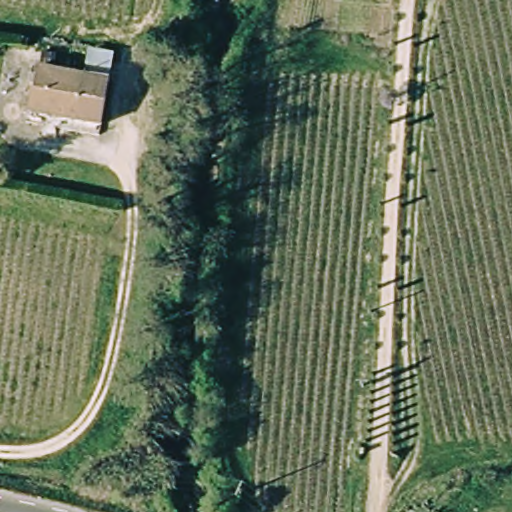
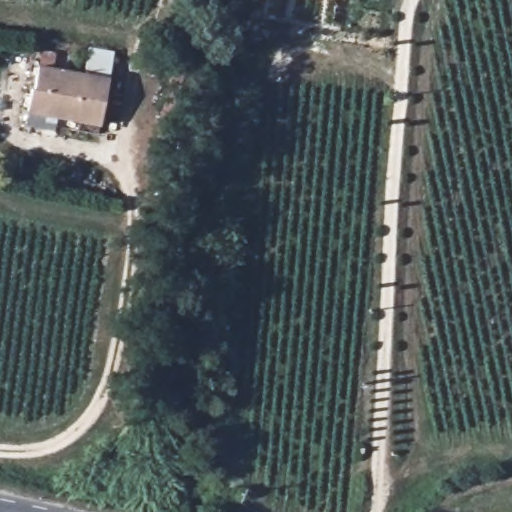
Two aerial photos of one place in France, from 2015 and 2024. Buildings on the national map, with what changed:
unchanged [(31,72),(35,73),(40,54),(114,72),(104,115),(27,95),(31,72)]
unchanged [(104,115),(102,127),(24,109),(27,95),(104,115)]

